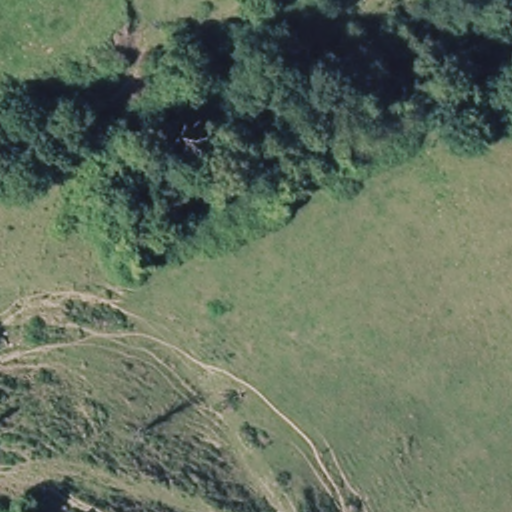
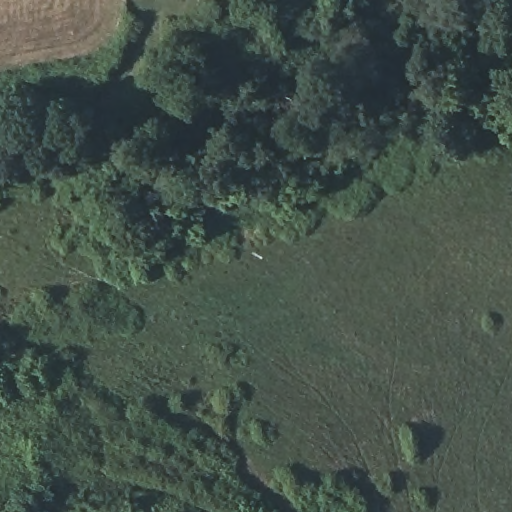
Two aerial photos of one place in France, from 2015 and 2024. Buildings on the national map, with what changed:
[]

